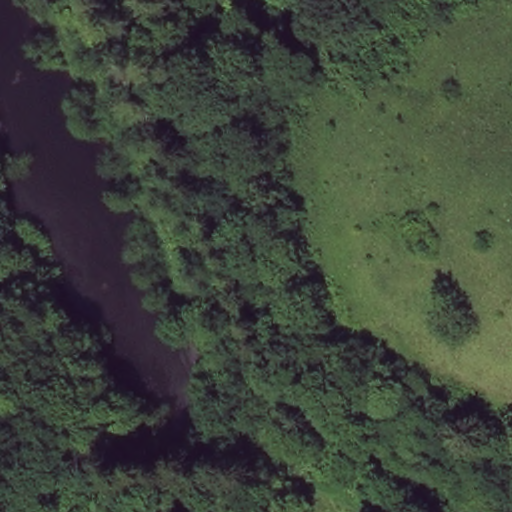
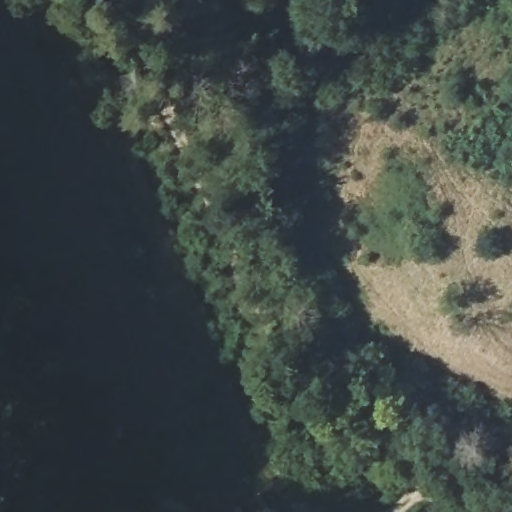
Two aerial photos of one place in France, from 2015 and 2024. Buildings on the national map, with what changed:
[]

